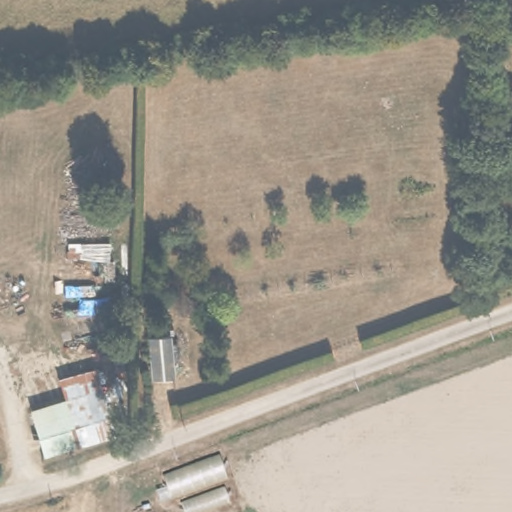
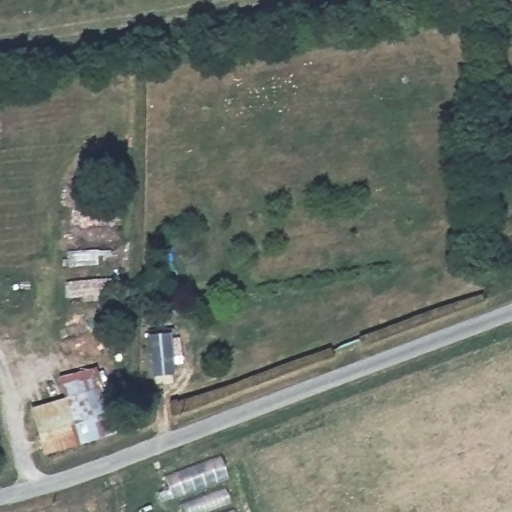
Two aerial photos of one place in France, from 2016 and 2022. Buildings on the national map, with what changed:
unchanged [(154,376),(149,332),(175,332),(179,374),(154,376)]
unchanged [(47,455),(29,404),(66,394),(83,443),(47,455)]

